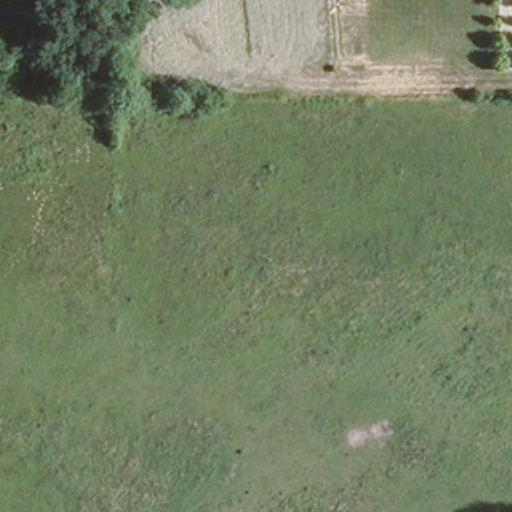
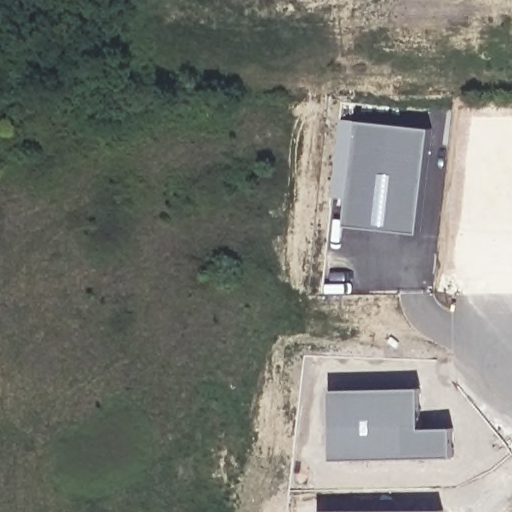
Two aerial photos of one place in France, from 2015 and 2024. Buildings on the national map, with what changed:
new [(347,195),(326,195),(334,119),(355,120),(428,130),(417,233),(343,226),(347,195)]
new [(330,390),(419,388),(422,426),(449,425),(453,455),(329,457),(330,390)]
new [(440,509),(440,512),(320,512),(320,510),(440,509)]

